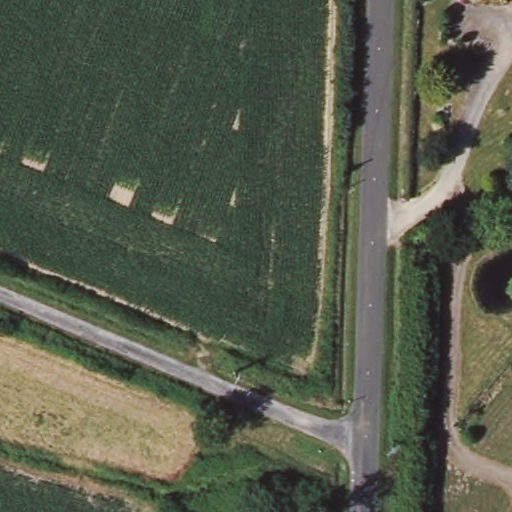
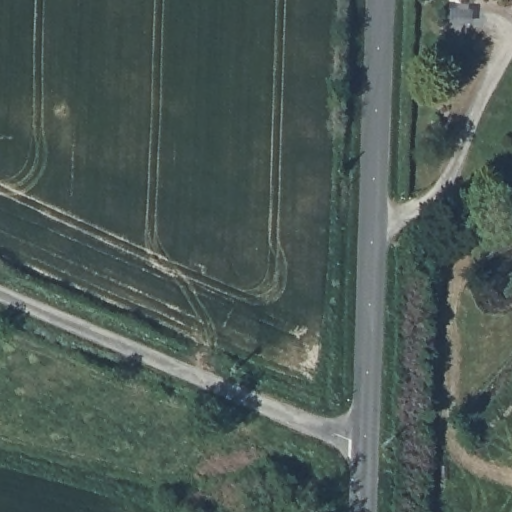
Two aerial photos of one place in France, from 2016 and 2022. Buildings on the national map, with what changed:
[]

